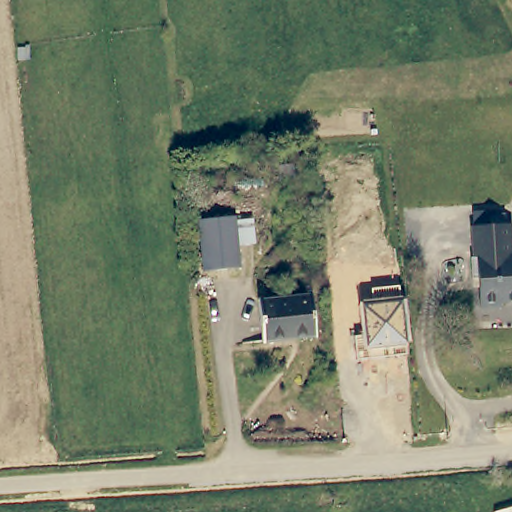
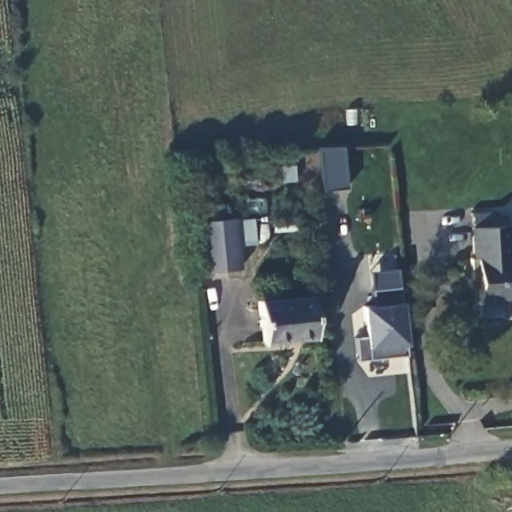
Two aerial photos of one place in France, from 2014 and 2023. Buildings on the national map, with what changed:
new [(342,145),(347,188),(322,191),(317,146),(342,145)]
unchanged [(202,219),(236,215),(244,265),(209,269),(202,219)]
unchanged [(503,304),(503,308),(482,309),(480,279),(475,279),(473,259),(477,259),(475,228),(493,227),(493,219),(508,219),(508,227),(512,227),(512,303),(503,304)]
unchanged [(357,361),(355,337),(366,335),(362,307),(374,305),(370,270),(398,267),(402,302),(407,345),(406,355),(357,361)]
unchanged [(311,294),(315,336),(265,343),(260,300),(311,294)]

